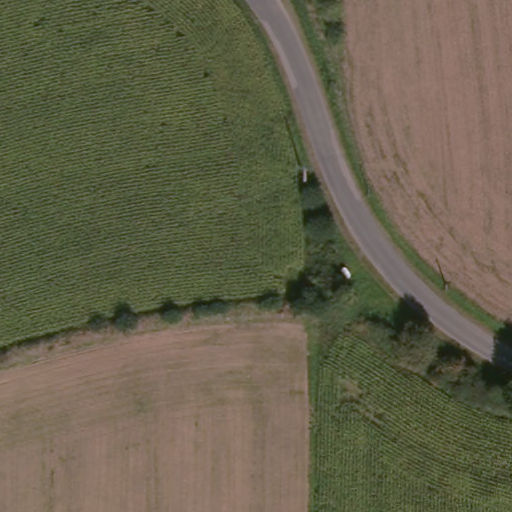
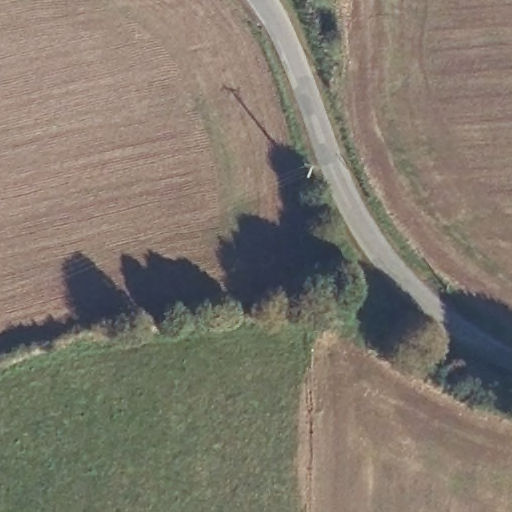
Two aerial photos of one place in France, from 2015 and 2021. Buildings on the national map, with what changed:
[]

